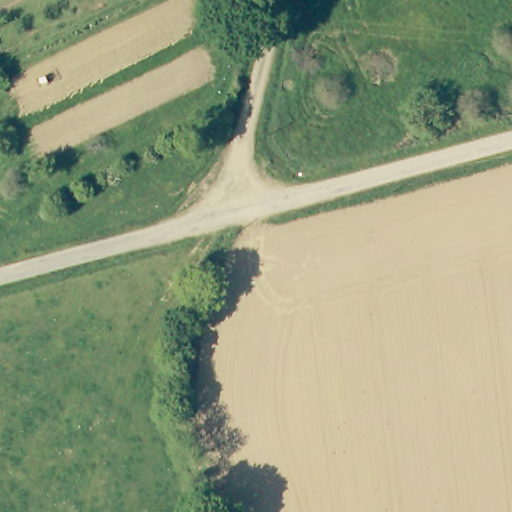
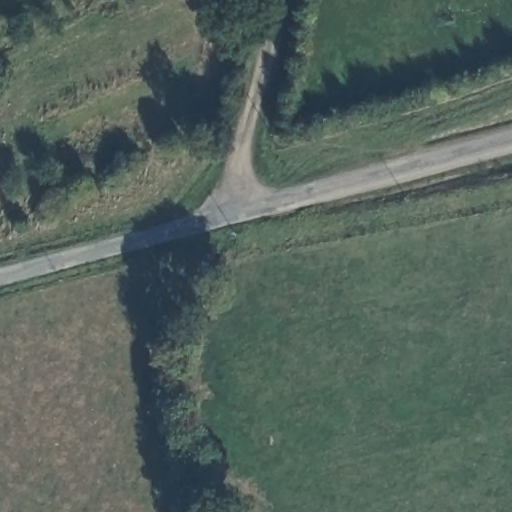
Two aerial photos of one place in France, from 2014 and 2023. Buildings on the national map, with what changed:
[]

